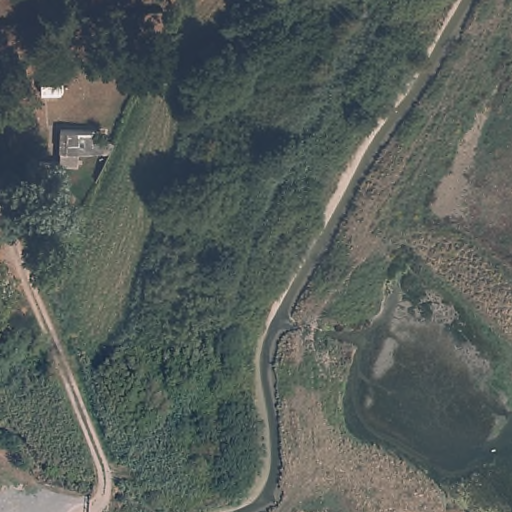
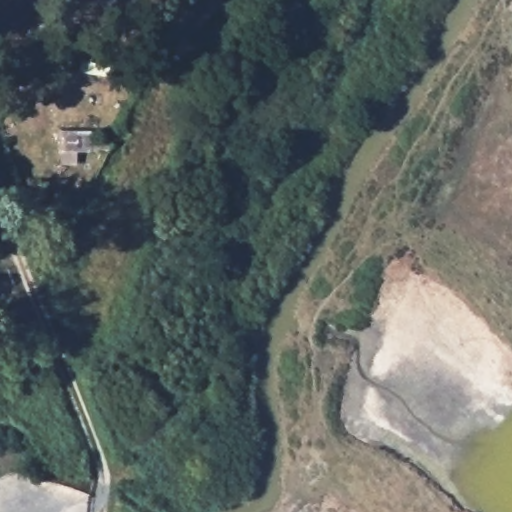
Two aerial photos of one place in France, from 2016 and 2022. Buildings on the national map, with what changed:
unchanged [(106,149),(106,157),(63,156),(65,135),(96,137),(96,148),(106,149)]

